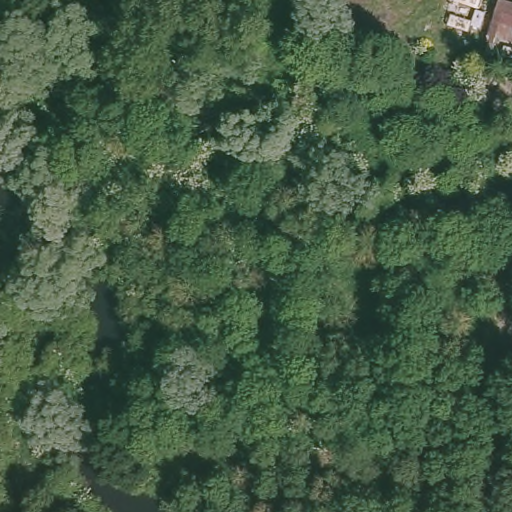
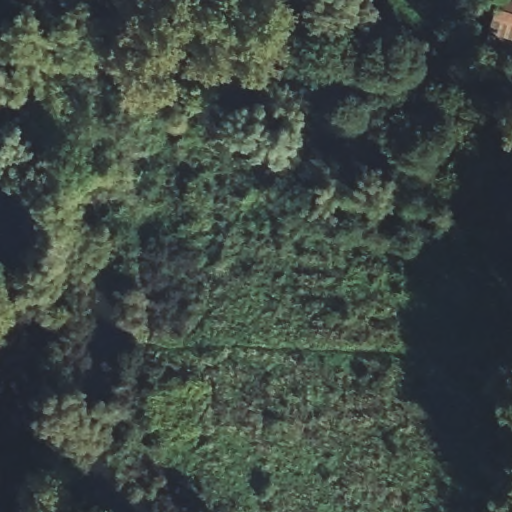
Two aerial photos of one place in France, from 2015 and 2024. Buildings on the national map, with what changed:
unchanged [(512,20),(490,15),(494,0),(512,0),(512,20)]

